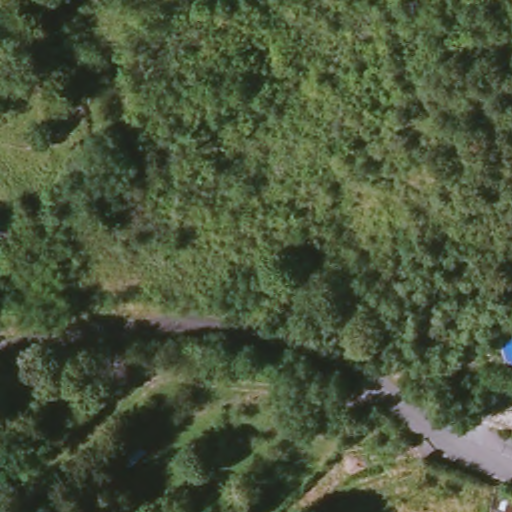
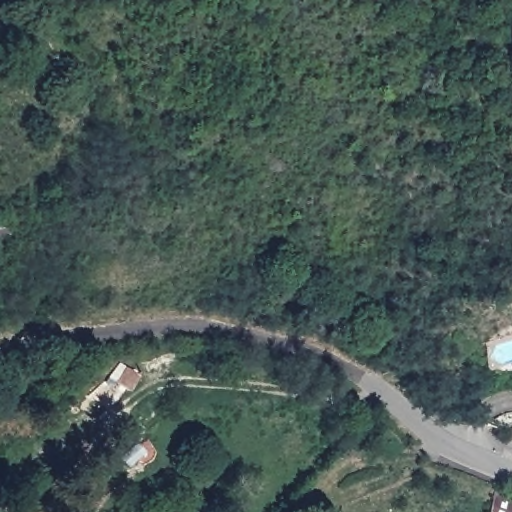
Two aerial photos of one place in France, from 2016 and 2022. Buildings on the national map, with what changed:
unchanged [(3,216),(10,235),(0,238),(0,217),(3,216)]
unchanged [(143,374),(136,392),(119,384),(126,366),(143,374)]
unchanged [(23,491),(14,502),(0,491),(0,490),(8,480),(23,491)]
unchanged [(495,505),(498,489),(512,495),(512,512),(493,512),(495,505)]

